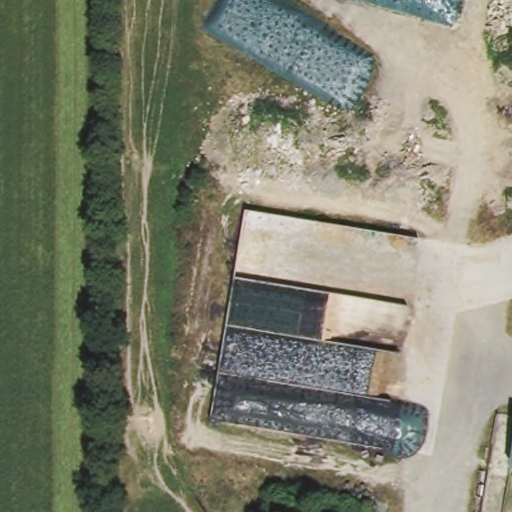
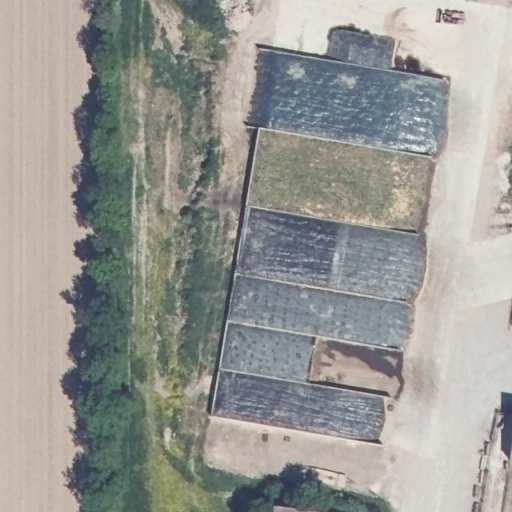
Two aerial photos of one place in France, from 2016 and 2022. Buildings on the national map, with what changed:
unchanged [(512,452),(512,464),(510,464),(512,452)]
unchanged [(276,507),(306,512),(275,512),(276,507)]

